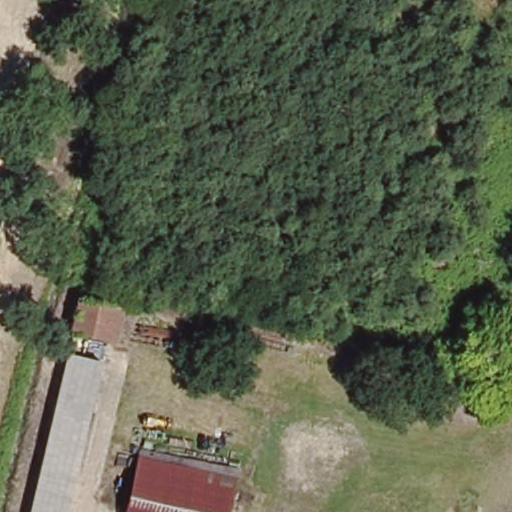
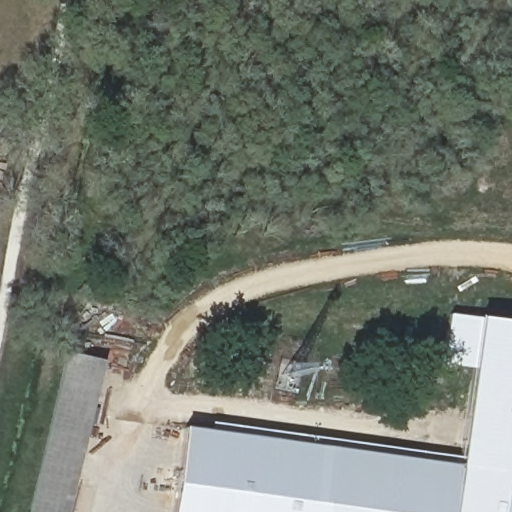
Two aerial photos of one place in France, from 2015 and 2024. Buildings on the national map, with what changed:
demolished [(124,310),(115,343),(71,335),(79,298),(124,310)]
new [(473,369),(442,364),(450,314),(478,318),(512,323),(512,475),(459,467),(473,369)]
unchanged [(68,355),(103,362),(71,512),(38,512),(33,511),(32,512),(68,355)]
new [(330,512),(170,512),(183,427),(337,452),(330,512)]
demolished [(137,451),(243,473),(235,512),(126,512),(137,451)]
new [(512,512),(330,512),(337,452),(512,475),(512,512)]
unchanged [(33,511),(38,512),(32,512),(33,511)]

